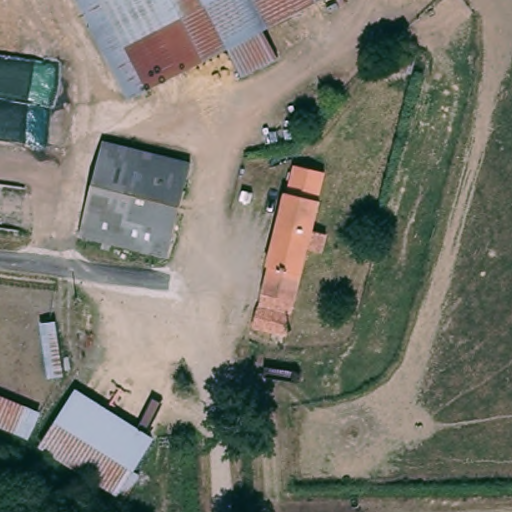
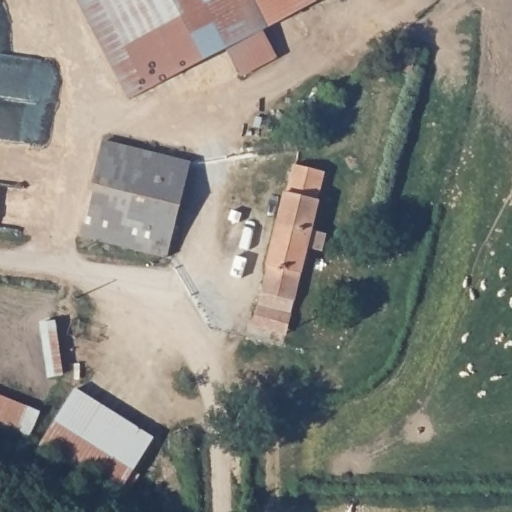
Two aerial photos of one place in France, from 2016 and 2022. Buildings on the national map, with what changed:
unchanged [(130,100),(80,0),(99,0),(147,91),(130,100)]
unchanged [(308,9),(265,31),(227,50),(147,91),(99,0),(305,0),(308,9)]
unchanged [(308,9),(305,0),(326,0),(308,9)]
unchanged [(265,31),(278,58),(241,77),(227,50),(265,31)]
unchanged [(191,173),(165,255),(78,230),(102,149),(191,173)]
unchanged [(329,174),(305,252),(280,339),(250,330),(296,164),(329,174)]
unchanged [(76,389),(153,440),(137,466),(61,417),(76,389)]
unchanged [(61,417),(137,466),(122,491),(46,441),(61,417)]

